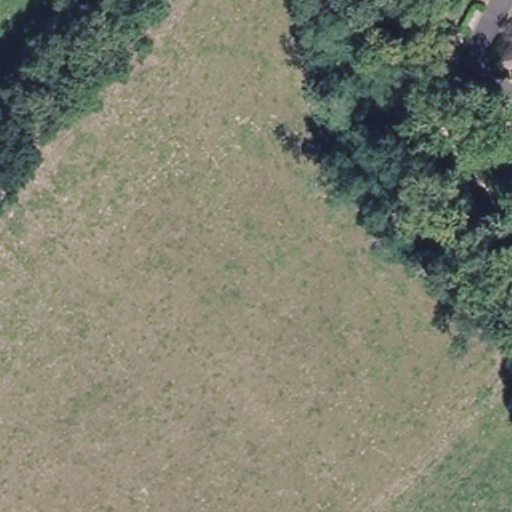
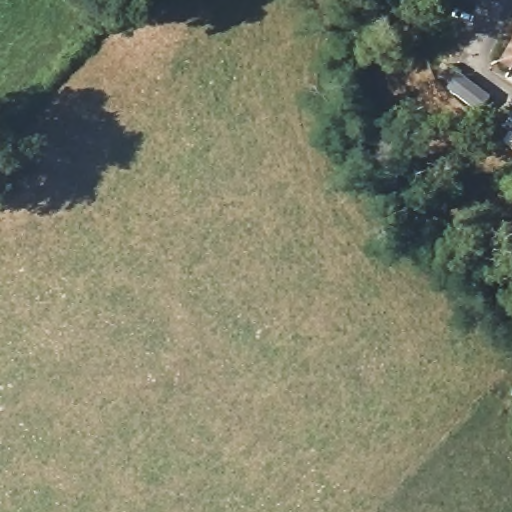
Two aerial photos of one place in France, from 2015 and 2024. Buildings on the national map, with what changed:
unchanged [(512,54),(509,59),(497,51),(512,26),(512,54)]

